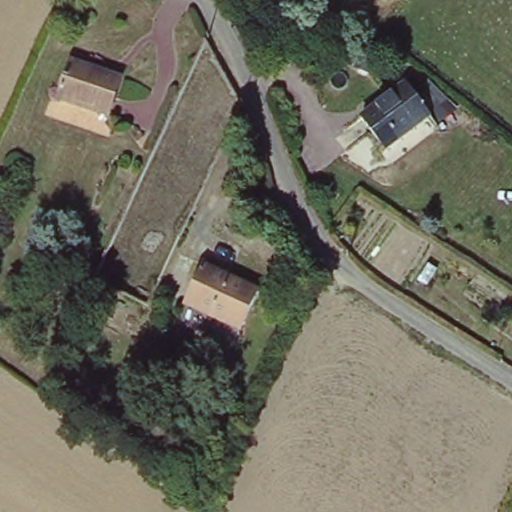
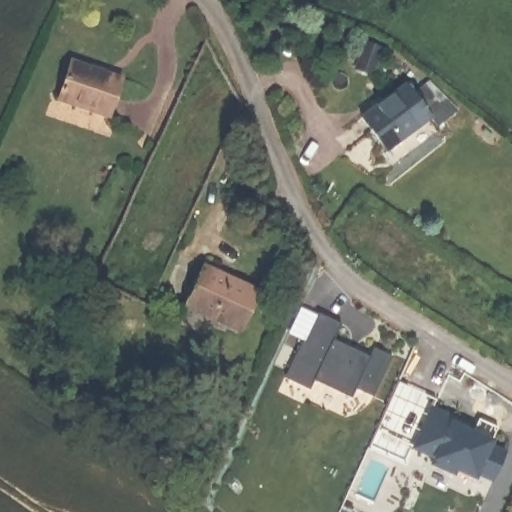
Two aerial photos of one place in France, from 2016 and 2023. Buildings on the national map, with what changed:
unchanged [(126,80),(108,119),(60,96),(78,57),(126,80)]
unchanged [(426,116),(377,145),(358,112),(406,85),(426,116)]
unchanged [(260,293),(242,332),(188,306),(206,267),(260,293)]
new [(341,320),(334,336),(371,354),(376,346),(393,354),(374,395),(357,386),(352,395),(315,377),(311,387),(285,374),(319,308),(341,320)]
new [(479,470),(478,475),(458,467),(456,470),(436,462),(439,456),(416,445),(434,405),(456,416),(453,421),(494,440),(493,443),(509,450),(496,477),(479,470)]

